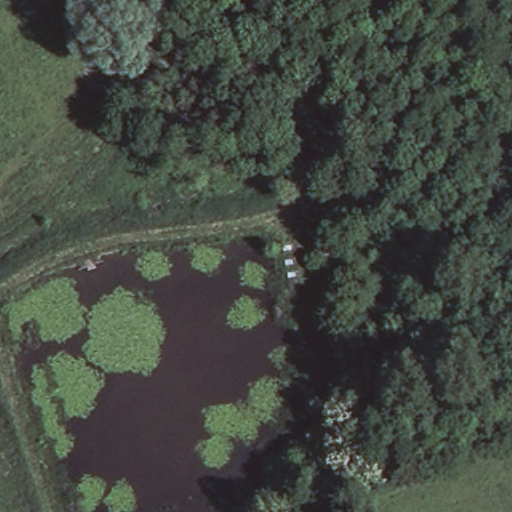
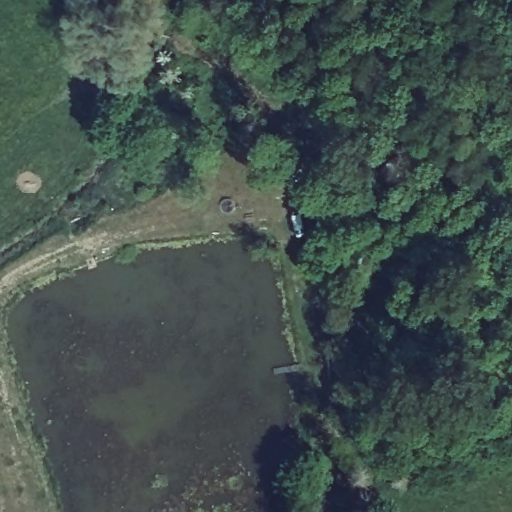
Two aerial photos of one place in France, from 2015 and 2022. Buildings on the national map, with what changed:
[]

